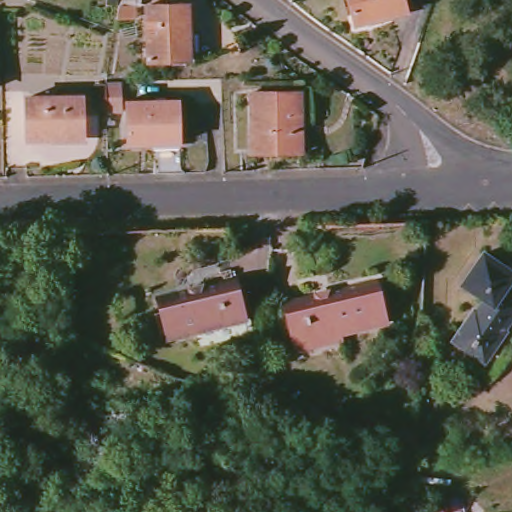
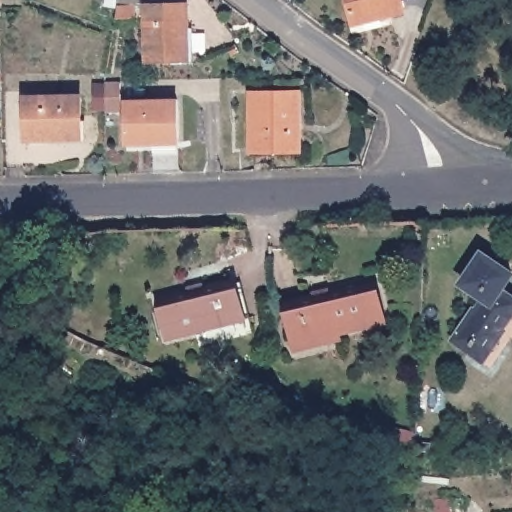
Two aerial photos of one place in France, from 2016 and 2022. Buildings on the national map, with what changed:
unchanged [(403,0),(406,10),(356,23),(350,0),(403,0)]
unchanged [(148,4),(189,3),(190,41),(184,41),(184,59),(149,59),(148,4)]
unchanged [(122,81),(122,111),(107,112),(107,81),(122,81)]
unchanged [(252,92),(299,91),(300,129),(295,129),(296,150),(253,150),(252,92)]
unchanged [(66,140),(28,140),(27,96),(82,95),(83,132),(84,139),(66,140)]
unchanged [(155,173),(154,143),(128,144),(127,101),(179,100),(181,167),(183,172),(155,173)]
unchanged [(456,341),(475,312),(477,313),(486,300),(462,284),(482,254),(512,274),(512,278),(503,292),(512,298),(512,316),(503,330),(504,332),(491,352),(485,360),(472,351),(456,341)]
unchanged [(195,337),(193,327),(161,335),(151,294),(233,274),(243,315),(245,324),(195,337)]
unchanged [(293,353),(291,345),(281,304),(378,280),(389,321),(342,332),(344,341),(293,353)]
unchanged [(418,455),(418,445),(418,443),(431,443),(431,457),(418,455)]

